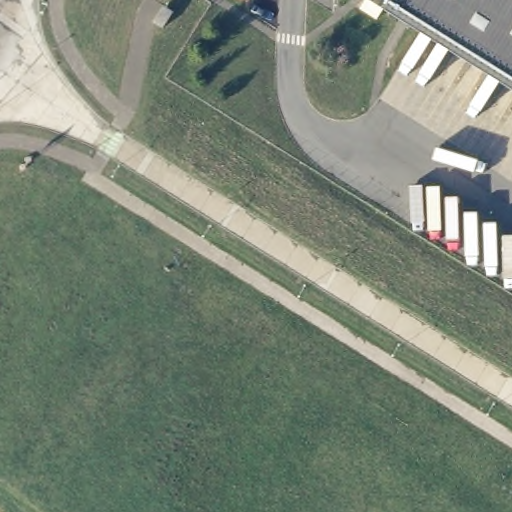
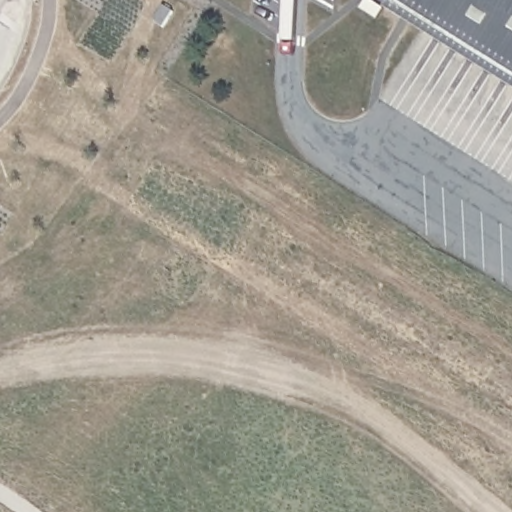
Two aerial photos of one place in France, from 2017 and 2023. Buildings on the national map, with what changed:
unchanged [(385,7),(389,0),(390,0),(512,76),(512,87),(385,7)]
unchanged [(390,0),(512,0),(512,76),(390,0)]
unchanged [(164,5),(173,11),(163,27),(154,21),(164,5)]

